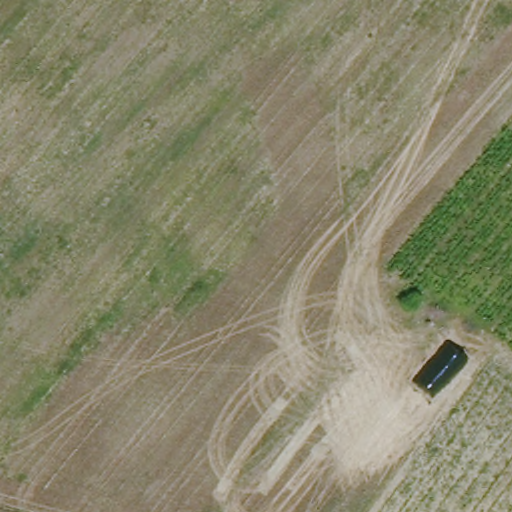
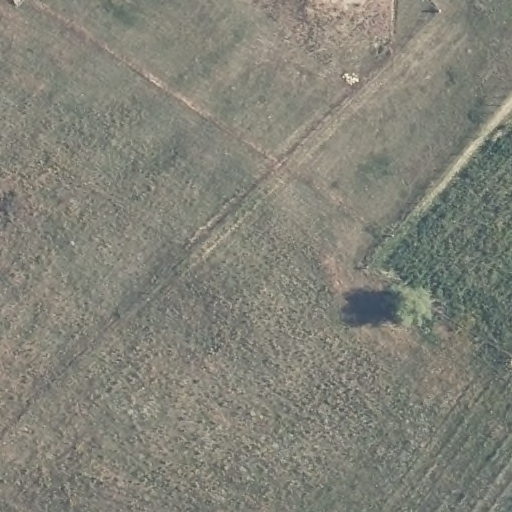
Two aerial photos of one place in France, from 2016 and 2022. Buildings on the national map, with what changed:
[]

